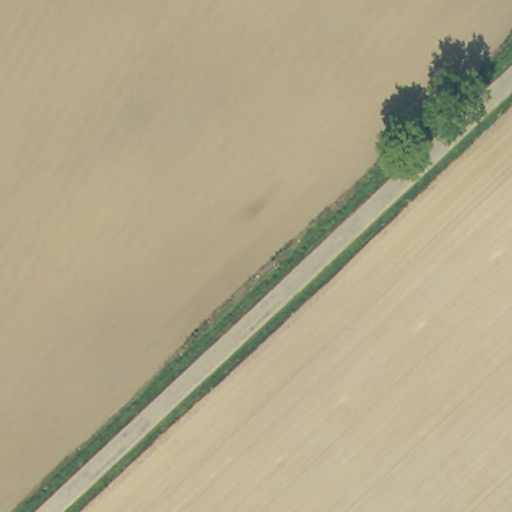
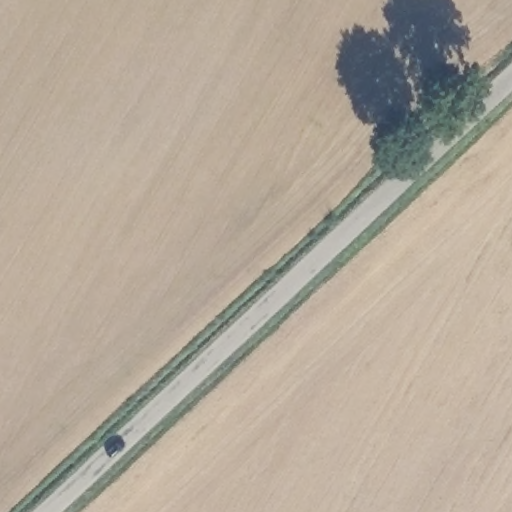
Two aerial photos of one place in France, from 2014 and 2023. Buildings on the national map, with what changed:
[]

